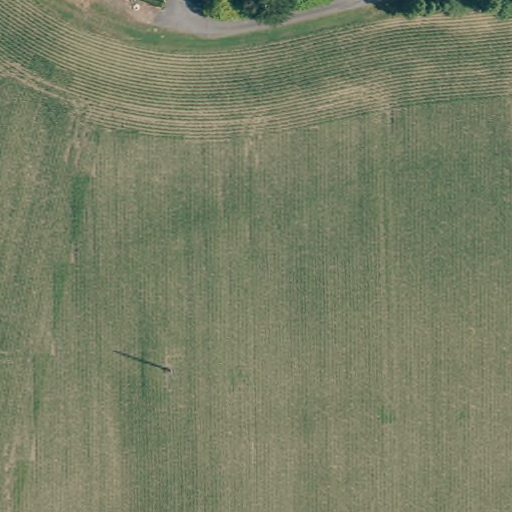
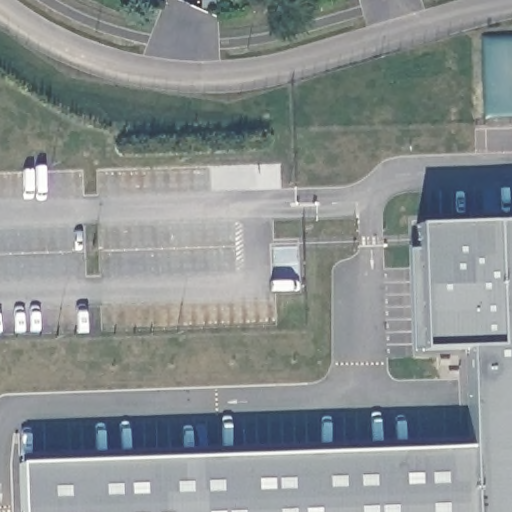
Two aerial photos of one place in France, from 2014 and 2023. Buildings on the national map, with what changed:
new [(467,449),(464,350),(420,351),(417,225),(512,222),(512,512),(20,512),(19,464),(467,449)]

